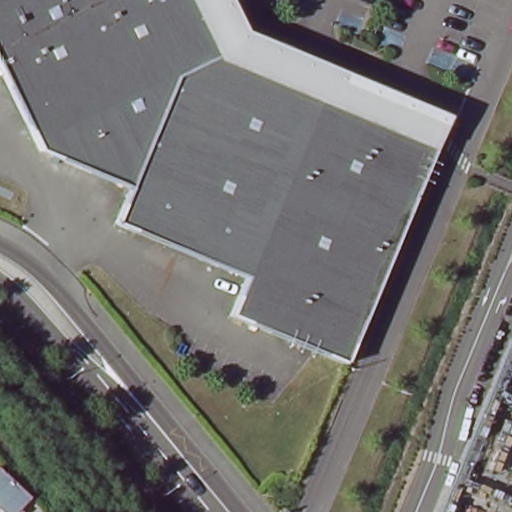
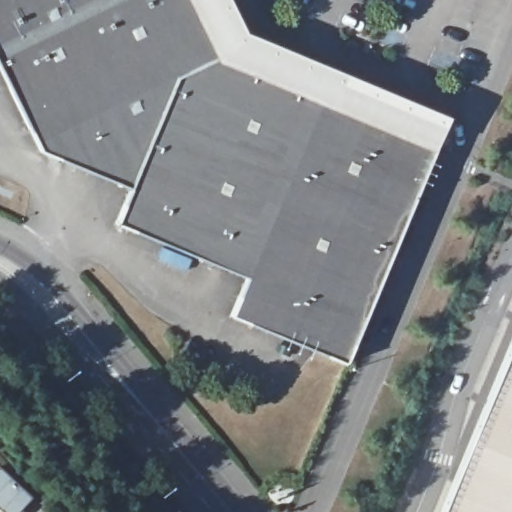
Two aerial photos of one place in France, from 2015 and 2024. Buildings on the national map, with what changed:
unchanged [(440,142),(347,363),(231,315),(247,277),(117,222),(132,188),(42,151),(0,65),(0,0),(201,0),(226,53),(440,142)]
new [(512,339),(512,512),(440,512),(512,339)]
new [(32,497),(21,509),(24,512),(5,512),(0,507),(0,467),(32,497)]

